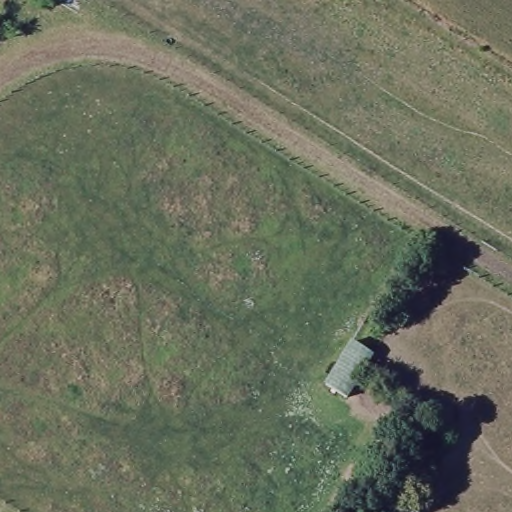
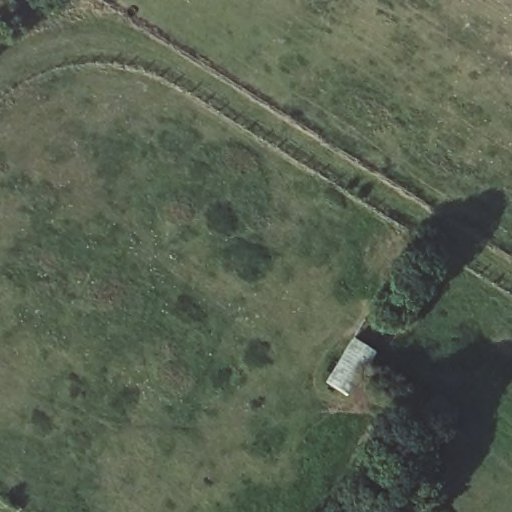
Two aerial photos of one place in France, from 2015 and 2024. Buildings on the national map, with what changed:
unchanged [(352,338),(373,350),(362,367),(347,391),(327,378),(342,354),(352,338)]

